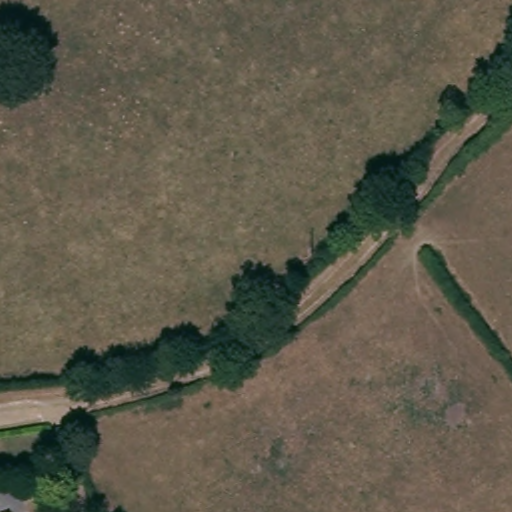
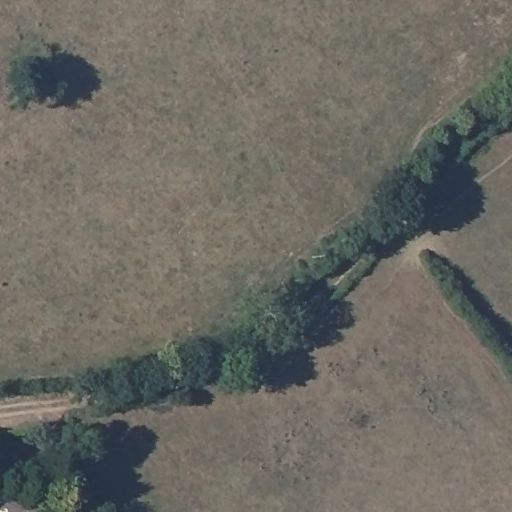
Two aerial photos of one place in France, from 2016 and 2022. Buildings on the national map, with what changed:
[]

